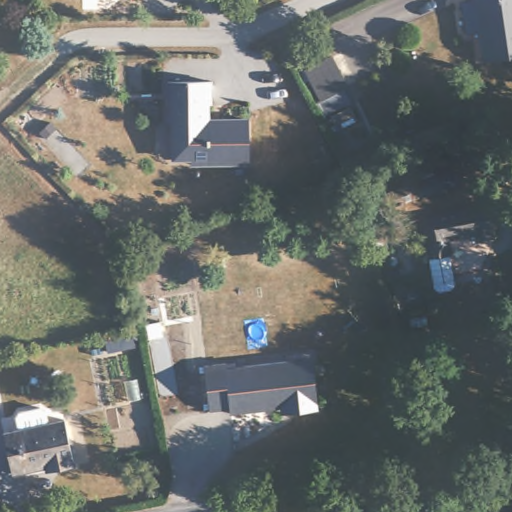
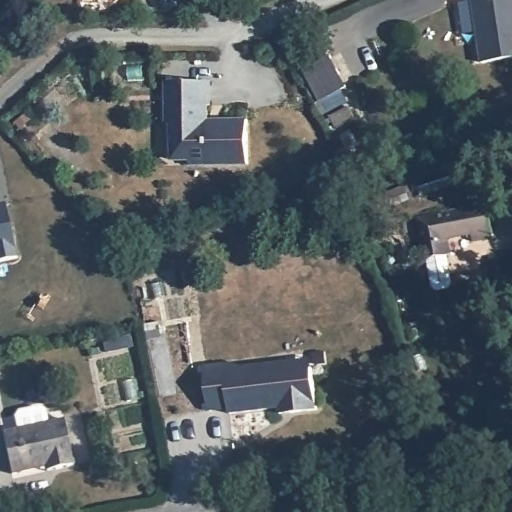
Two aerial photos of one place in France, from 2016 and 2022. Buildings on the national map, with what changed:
unchanged [(459,27),(459,0),(512,0),(512,58),(495,59),(476,59),(475,26),(459,27)]
unchanged [(336,64),(349,96),(322,107),(309,74),(336,64)]
unchanged [(214,84),(214,106),(211,106),(211,122),(250,123),(250,166),(192,165),(193,146),(178,146),(178,124),(170,124),(171,83),(214,84)]
new [(0,263),(0,206),(5,205),(17,259),(0,263)]
unchanged [(484,212),(490,246),(474,249),(473,241),(447,245),(450,261),(445,262),(450,290),(447,295),(438,296),(433,293),(428,265),(424,266),(416,225),(484,212)]
unchanged [(283,408),(232,412),(232,406),(210,408),(207,363),(228,362),(228,367),(289,362),(314,360),(315,371),(319,412),(294,415),(284,415),(283,408)]
unchanged [(15,420),(19,415),(40,411),(45,415),(47,427),(64,424),(73,471),(47,476),(46,471),(11,478),(3,436),(18,433),(15,420)]

